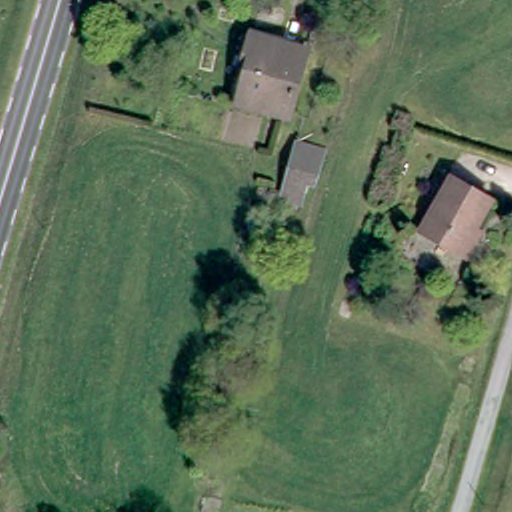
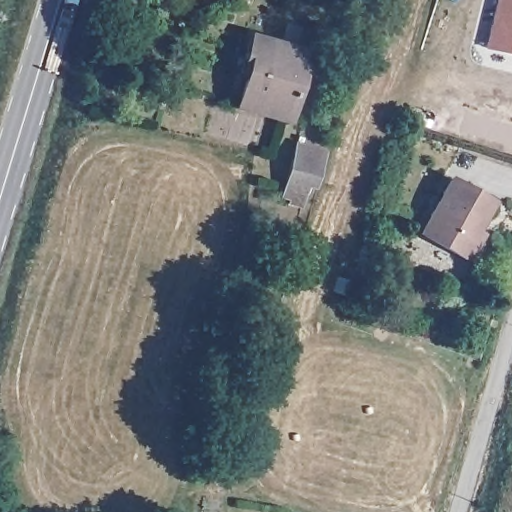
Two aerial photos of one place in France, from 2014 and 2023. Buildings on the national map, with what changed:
new [(496,0),(512,0),(512,53),(485,47),(496,0)]
unchanged [(246,73),(240,72),(250,37),(305,52),(286,119),(236,107),(246,73)]
unchanged [(274,191),(283,139),(316,146),(305,197),(274,191)]
unchanged [(460,187),(497,211),(463,265),(425,242),(460,187)]

